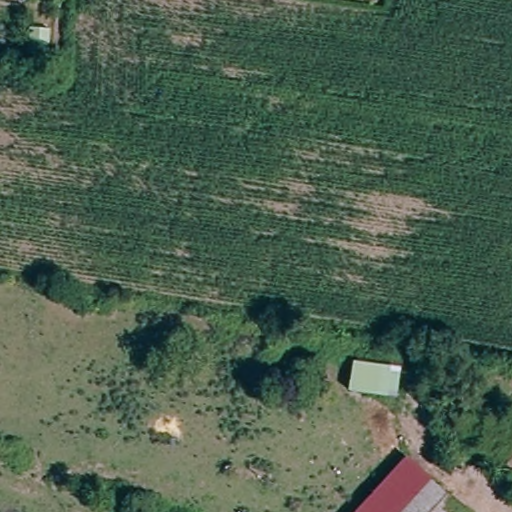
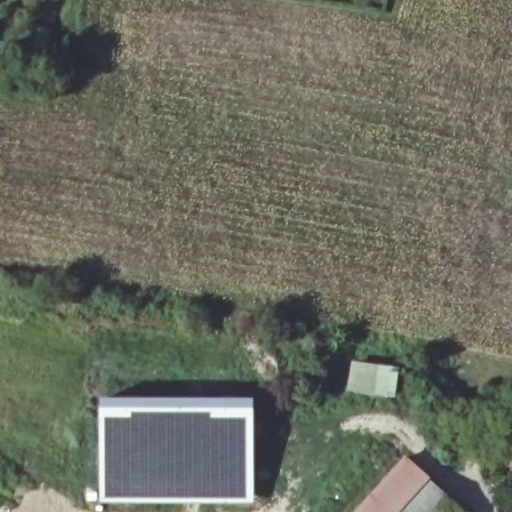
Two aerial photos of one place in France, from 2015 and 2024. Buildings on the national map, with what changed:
demolished [(402,304),(402,310),(452,318),(450,336),(427,332),(427,336),(377,331),(381,301),(402,304)]
new [(401,368),(397,399),(347,391),(352,361),(401,368)]
new [(100,399),(254,398),(254,502),(100,502),(100,399)]
new [(389,512),(355,512),(406,458),(425,472),(389,512)]
unchanged [(469,512),(389,512),(425,472),(469,512)]

